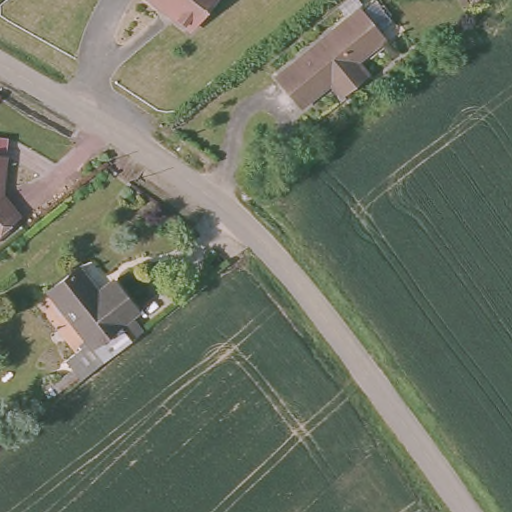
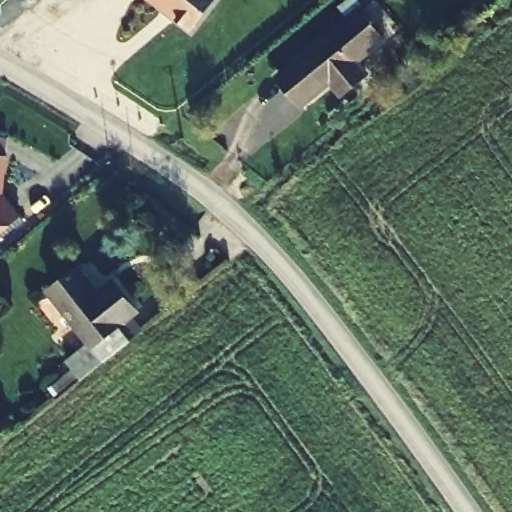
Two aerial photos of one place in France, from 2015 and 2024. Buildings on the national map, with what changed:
unchanged [(186,28),(150,0),(208,0),(186,28)]
unchanged [(360,11),(384,40),(301,104),(278,76),(360,11)]
unchanged [(3,155),(0,174),(0,154),(3,155)]
unchanged [(18,215),(0,229),(0,194),(18,215)]
unchanged [(83,390),(59,362),(83,342),(44,289),(74,264),(95,299),(116,282),(151,330),(83,390)]

